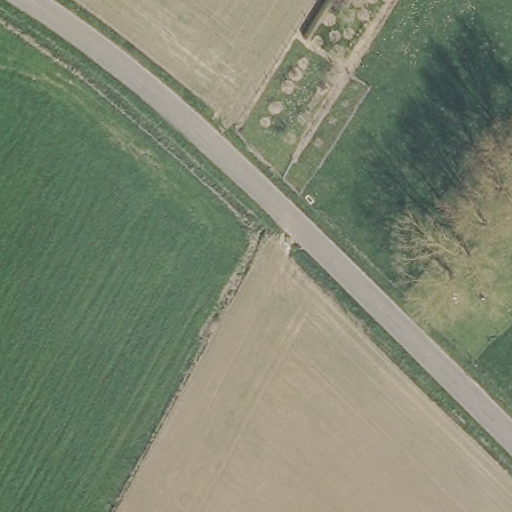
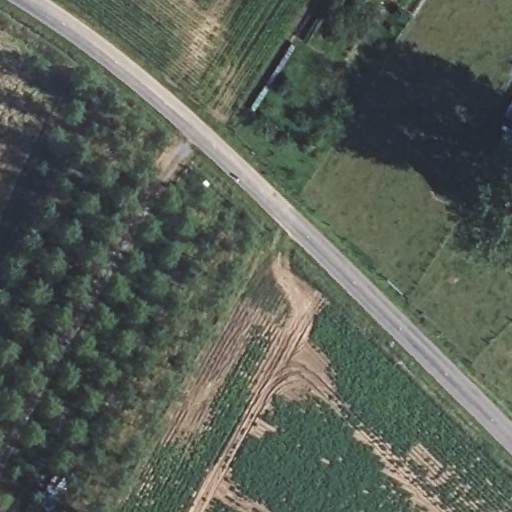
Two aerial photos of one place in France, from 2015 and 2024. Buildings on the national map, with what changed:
[]

